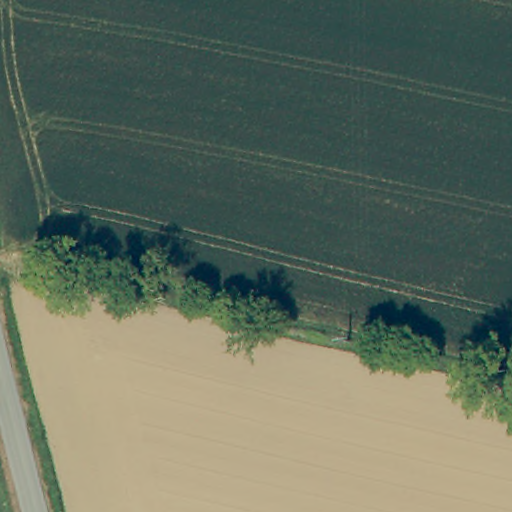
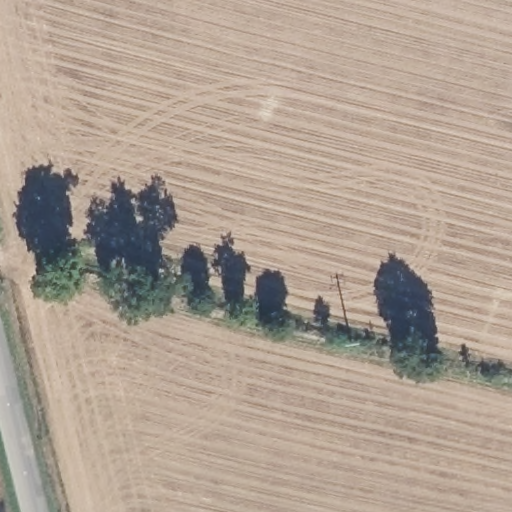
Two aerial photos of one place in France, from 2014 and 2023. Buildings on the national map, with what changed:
[]

